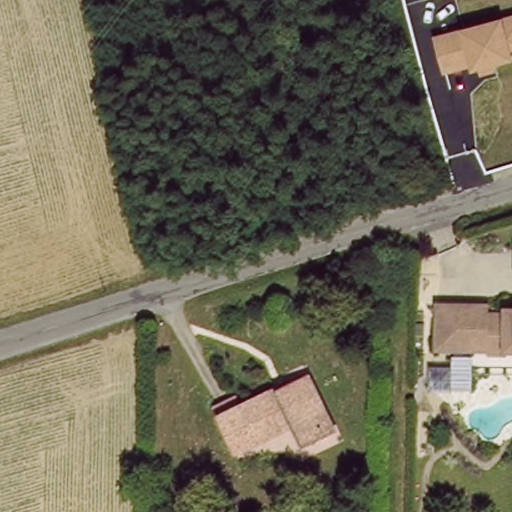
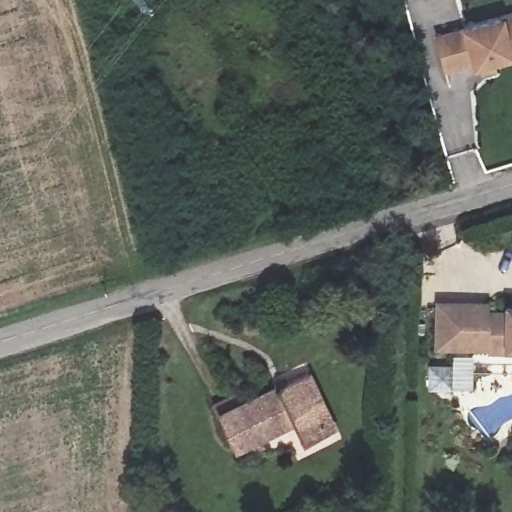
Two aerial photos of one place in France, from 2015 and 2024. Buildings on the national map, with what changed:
unchanged [(434,36),(464,29),(506,20),(512,18),(512,59),(472,68),(445,72),(434,36)]
unchanged [(490,305),(489,313),(504,314),(504,309),(512,309),(512,352),(503,352),(504,355),(484,353),(483,350),(434,347),(435,303),(490,305)]
unchanged [(320,442),(298,453),(289,432),(233,460),(214,422),(210,413),(231,402),(237,410),(302,376),(313,398),(332,436),(320,442)]

